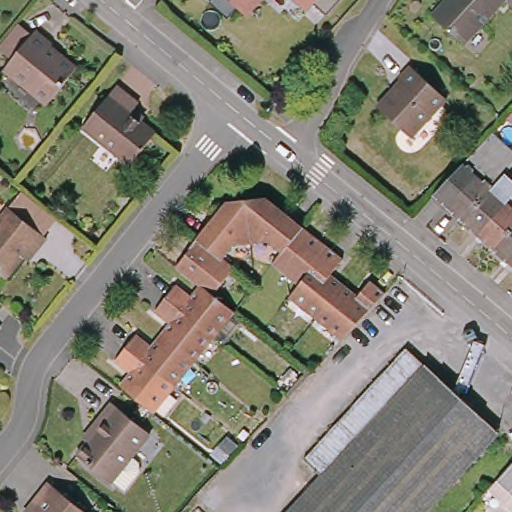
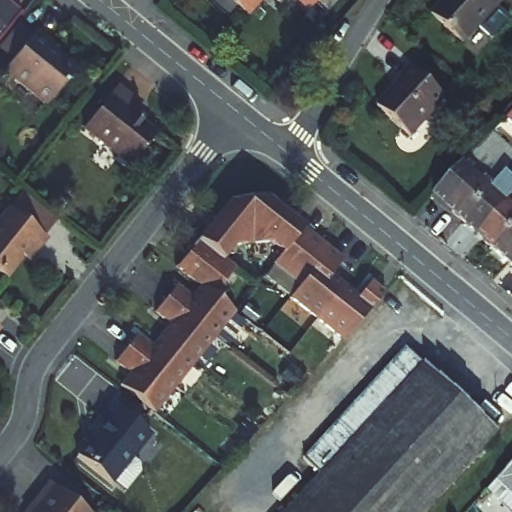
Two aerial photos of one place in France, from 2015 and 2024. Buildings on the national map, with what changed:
unchanged [(240,12),(227,0),(251,0),(240,12)]
unchanged [(324,15),(311,4),(302,4),(298,0),(338,0),(324,15)]
unchanged [(455,46),(424,17),(440,0),(497,0),(455,46)]
unchanged [(507,8),(497,0),(512,0),(512,3),(507,8)]
unchanged [(55,46),(51,51),(59,59),(62,55),(80,70),(49,108),(6,72),(16,60),(4,50),(22,29),(34,38),(38,33),(55,46)]
unchanged [(376,109),(392,91),(395,92),(401,86),(397,83),(409,69),(445,101),(409,138),(376,109)]
unchanged [(135,164),(89,126),(121,86),(143,104),(141,107),(151,116),(147,121),(161,132),(135,164)]
unchanged [(462,223),(434,197),(492,135),(497,140),(512,124),(512,150),(511,152),(512,153),(512,168),(505,176),(462,223)]
unchanged [(512,182),(512,198),(477,236),(462,223),(505,176),(512,182)]
unchanged [(113,362),(134,335),(149,346),(167,323),(152,312),(173,285),(189,296),(197,287),(172,268),(215,213),(223,203),(227,203),(257,198),(260,198),(271,206),(340,259),(329,274),(357,294),(367,279),(386,293),(355,326),(342,340),(288,299),(297,286),(270,266),(280,254),(266,243),(230,249),(221,260),(232,269),(211,296),(232,314),(152,413),(117,386),(127,373),(113,362)]
unchanged [(492,249),(477,236),(512,198),(512,228),(492,249)]
unchanged [(30,250),(4,280),(0,278),(0,219),(7,210),(46,241),(35,254),(30,250)]
unchanged [(508,264),(492,249),(512,228),(512,260),(508,264)]
unchanged [(508,264),(512,260),(512,268),(508,264)]
unchanged [(0,328),(7,333),(0,343),(0,328)]
unchanged [(302,497),(326,472),(309,456),(411,346),(427,361),(427,362),(502,431),(428,512),(288,512),(292,508),(285,502),(296,491),(302,497)]
unchanged [(154,435),(114,484),(80,456),(90,443),(86,439),(102,417),(114,403),(154,435)]
unchanged [(491,493),(501,482),(512,470),(512,512),(502,502),(491,493)]
unchanged [(32,512),(28,509),(36,499),(47,485),(80,512),(32,512)]

